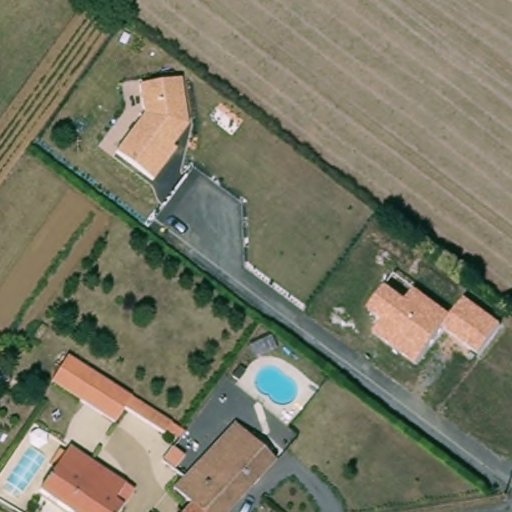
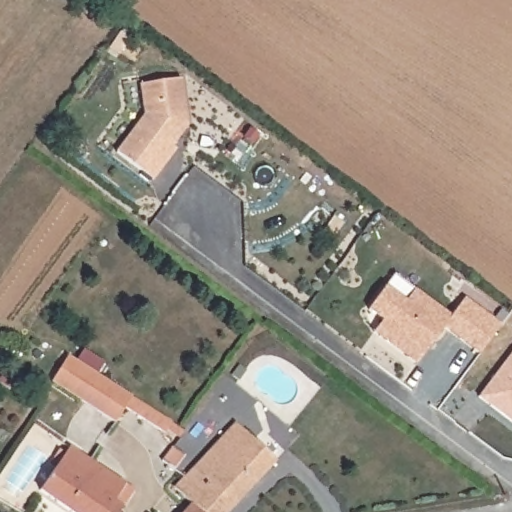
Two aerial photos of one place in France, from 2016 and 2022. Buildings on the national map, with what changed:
unchanged [(182,77),(188,123),(172,143),(178,148),(154,177),(119,149),(146,113),(140,84),(182,77)]
unchanged [(478,353),(444,329),(414,364),(372,334),(382,321),(367,310),(385,286),(405,299),(414,289),(451,315),(463,299),(500,325),(478,353)]
new [(512,352),(512,424),(477,398),(512,352)]
unchanged [(79,358),(111,379),(134,394),(177,421),(171,430),(127,404),(118,418),(55,378),(71,353),(79,358)]
unchanged [(186,481),(188,478),(178,471),(190,457),(228,415),(279,463),(259,484),(251,493),(233,512),(204,512),(197,505),(179,489),(186,481)]
unchanged [(118,512),(70,512),(39,490),(45,481),(69,449),(124,486),(132,492),(121,508),(118,512)]
unchanged [(204,512),(191,512),(197,505),(204,512)]

